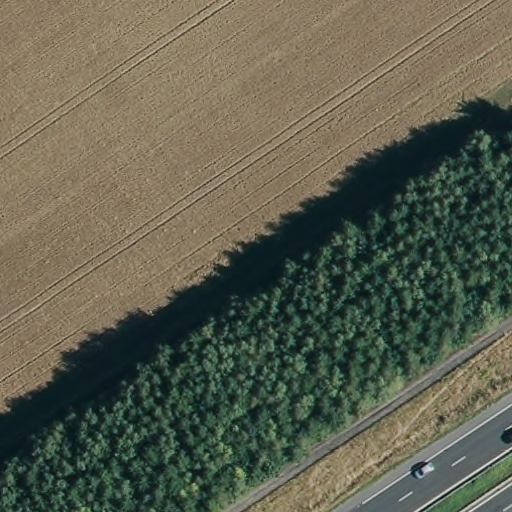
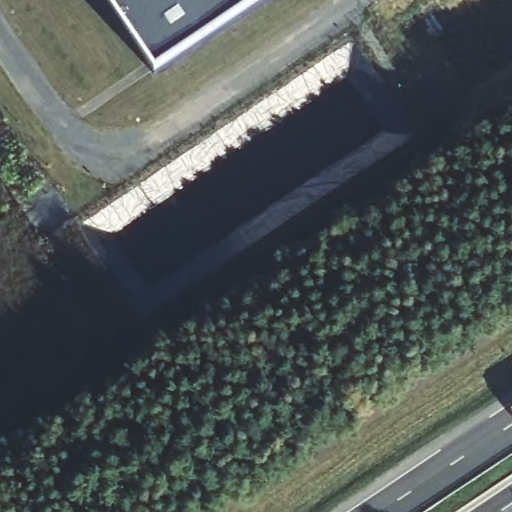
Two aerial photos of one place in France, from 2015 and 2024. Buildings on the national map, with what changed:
new [(101,0),(269,0),(153,78),(101,0)]

